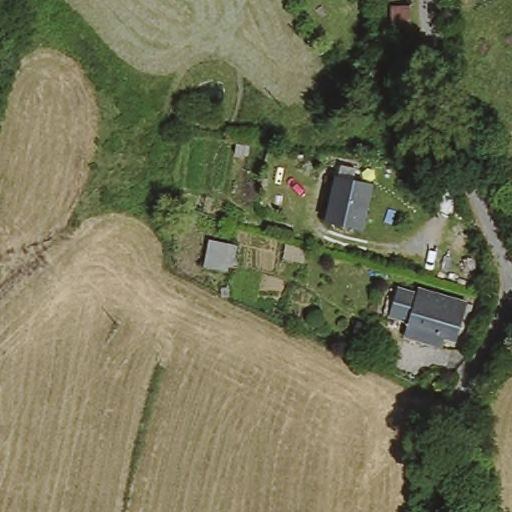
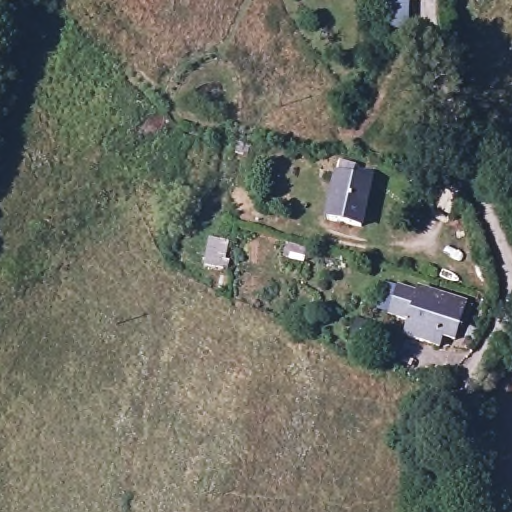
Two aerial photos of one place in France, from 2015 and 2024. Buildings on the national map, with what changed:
unchanged [(406,29),(388,29),(386,5),(404,5),(406,29)]
unchanged [(366,223),(334,220),(339,177),(371,181),(366,223)]
unchanged [(209,234),(239,239),(234,265),(205,262),(209,234)]
unchanged [(453,347),(404,335),(413,317),(390,314),(401,281),(471,297),(453,347)]

